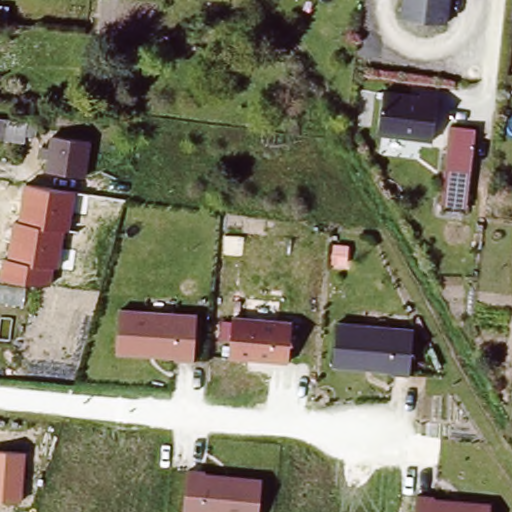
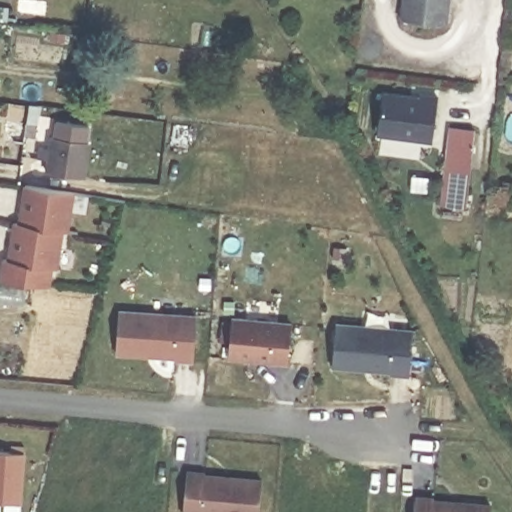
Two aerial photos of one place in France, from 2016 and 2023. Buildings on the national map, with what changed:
unchanged [(448,22),(405,17),(407,0),(450,0),(448,22)]
unchanged [(438,136),(381,131),(384,87),(441,92),(438,136)]
unchanged [(0,115),(40,120),(38,132),(28,131),(27,137),(0,134),(0,115)]
unchanged [(466,196),(441,193),(448,118),(472,121),(466,196)]
unchanged [(50,175),(51,162),(42,161),(43,147),(52,148),(54,135),(91,137),(87,178),(50,175)]
unchanged [(70,231),(65,231),(60,267),(53,267),(51,286),(0,279),(0,272),(2,257),(7,258),(13,221),(18,222),(24,184),(75,192),(70,231)]
unchanged [(115,355),(120,309),(196,313),(192,362),(173,360),(174,358),(115,355)]
unchanged [(232,317),(290,322),(287,364),(228,358),(232,317)]
unchanged [(331,367),(335,321),(413,327),(408,376),(390,374),(390,371),(331,367)]
unchanged [(21,502),(0,501),(0,452),(25,452),(21,502)]
unchanged [(262,478),(259,512),(184,512),(186,470),(262,478)]
unchanged [(491,502),(491,512),(414,512),(415,496),(491,502)]

